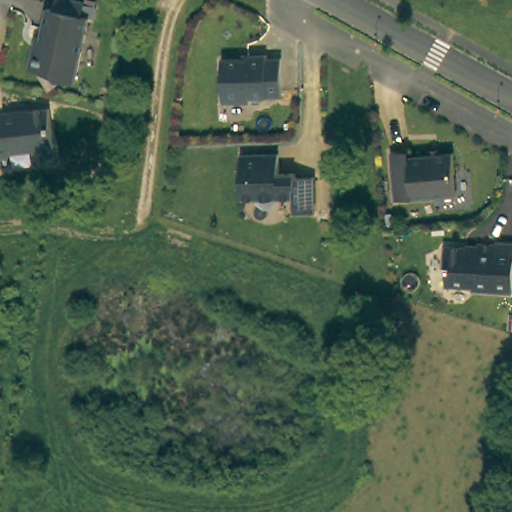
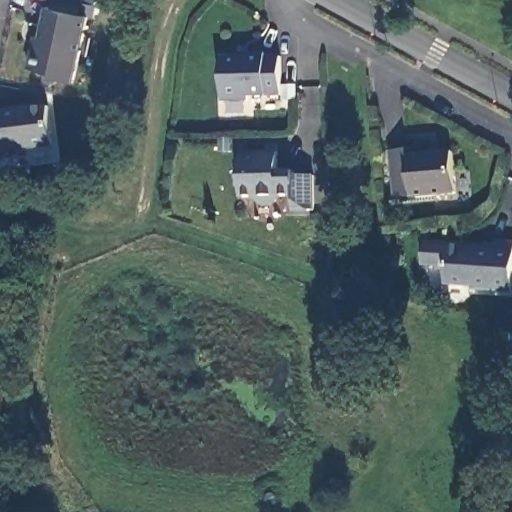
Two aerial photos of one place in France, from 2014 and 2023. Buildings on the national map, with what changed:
unchanged [(85,0),(87,0),(87,2),(100,5),(98,17),(93,16),(78,81),(62,78),(59,73),(33,67),(40,36),(45,37),(52,7),(58,8),(60,0),(85,0)]
unchanged [(224,57),(250,56),(249,53),(269,52),(269,56),(284,55),(285,94),(252,95),(252,99),(225,100),(224,57)]
unchanged [(0,114),(9,112),(8,109),(27,106),(27,108),(54,105),(59,144),(14,150),(15,153),(0,155),(0,114)]
unchanged [(412,147),(413,154),(456,149),(460,190),(399,197),(394,149),(412,147)]
unchanged [(282,154),(283,174),(299,173),(300,177),(319,176),(320,211),(300,212),(299,197),(283,198),(282,202),(278,206),(274,208),(268,207),(264,203),(262,198),(246,199),(244,155),(282,154)]
unchanged [(482,244),(500,245),(500,241),(512,242),(512,291),(477,290),(478,287),(451,285),(451,268),(447,267),(448,247),(482,249),(482,244)]

